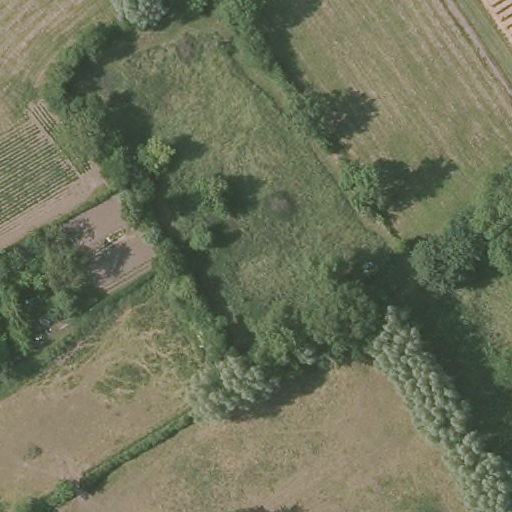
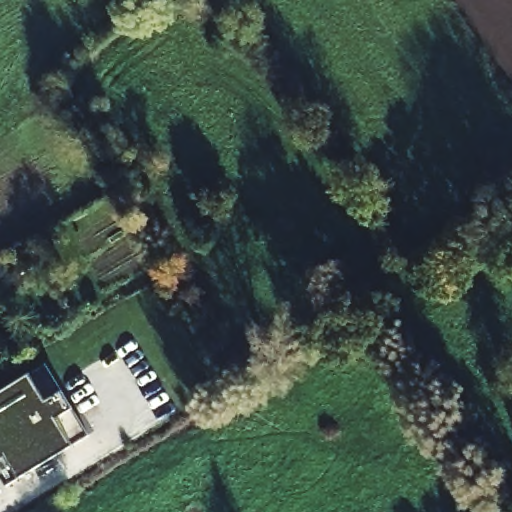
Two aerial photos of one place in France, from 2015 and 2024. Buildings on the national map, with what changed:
new [(89,435),(16,481),(2,457),(0,459),(0,393),(43,365),(89,435)]

